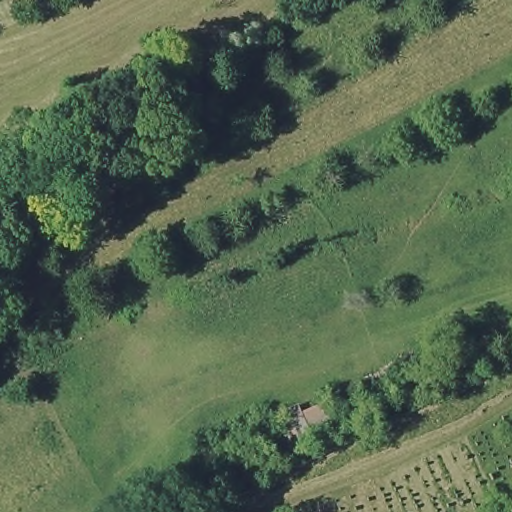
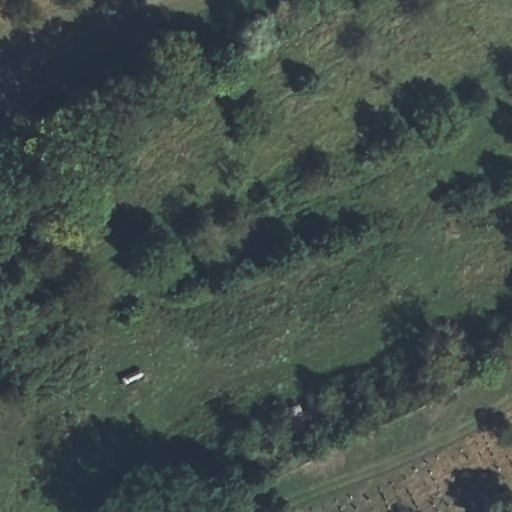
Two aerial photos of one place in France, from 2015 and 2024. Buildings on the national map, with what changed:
unchanged [(334,399),(344,425),(285,450),(274,426),(334,399)]

